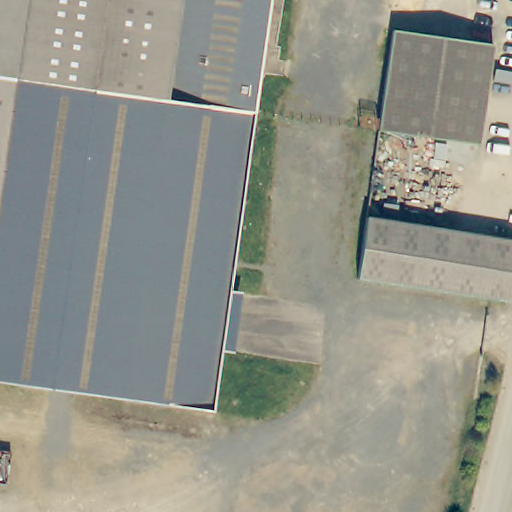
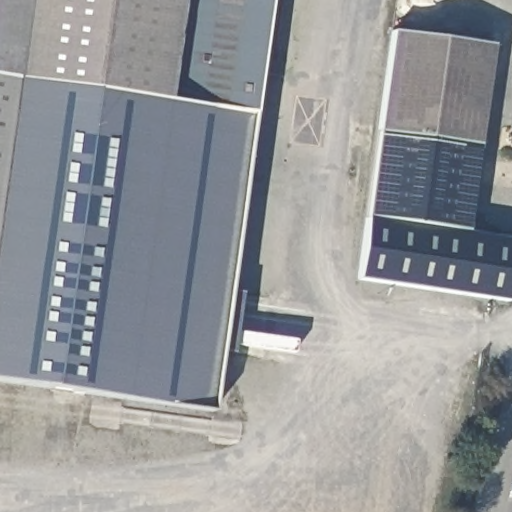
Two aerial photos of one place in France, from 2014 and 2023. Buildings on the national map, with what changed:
unchanged [(0,79),(0,0),(181,0),(156,101),(0,79)]
unchanged [(181,0),(267,0),(241,187),(0,154),(0,79),(156,101),(181,0)]
unchanged [(493,43),(481,144),(378,129),(391,30),(493,43)]
new [(481,144),(467,232),(364,218),(378,129),(481,144)]
unchanged [(210,412),(0,382),(0,154),(241,187),(210,412)]
unchanged [(356,280),(364,218),(512,238),(512,274),(509,300),(356,280)]

